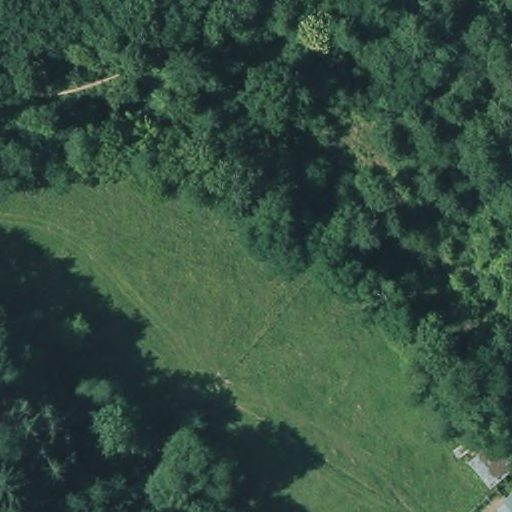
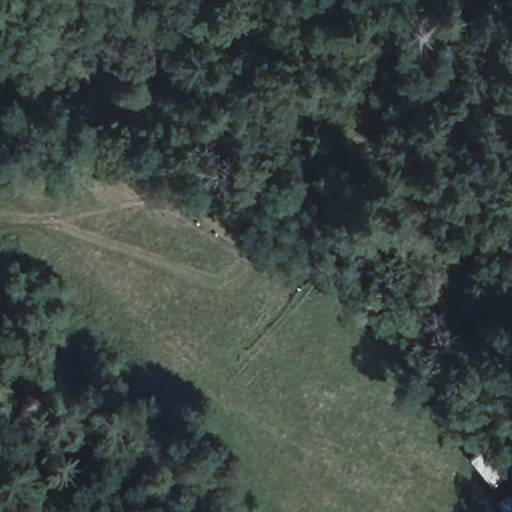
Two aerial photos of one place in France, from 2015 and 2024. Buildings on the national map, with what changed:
unchanged [(466,454),(495,436),(512,464),(512,474),(490,490),(466,454)]
unchanged [(498,507),(512,493),(512,512),(501,512),(498,507)]

